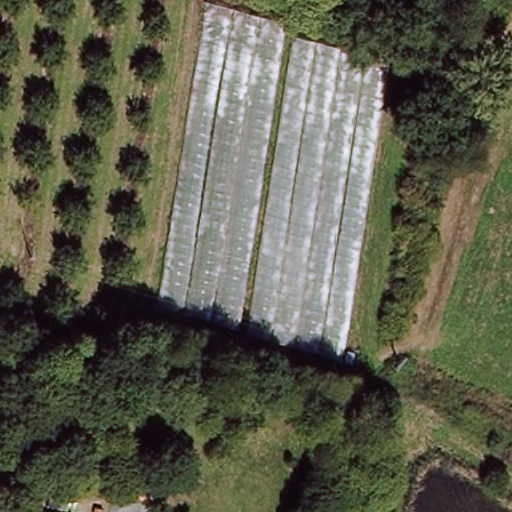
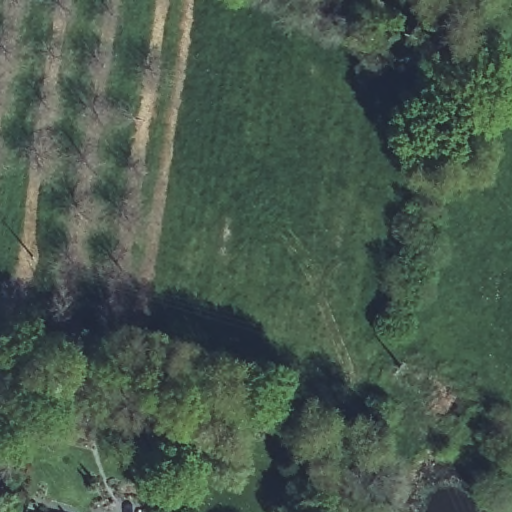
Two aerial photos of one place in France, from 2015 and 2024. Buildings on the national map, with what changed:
demolished [(244,330),(167,315),(216,2),(292,22),(244,330)]
demolished [(388,57),(343,357),(251,333),(296,30),(388,57)]

